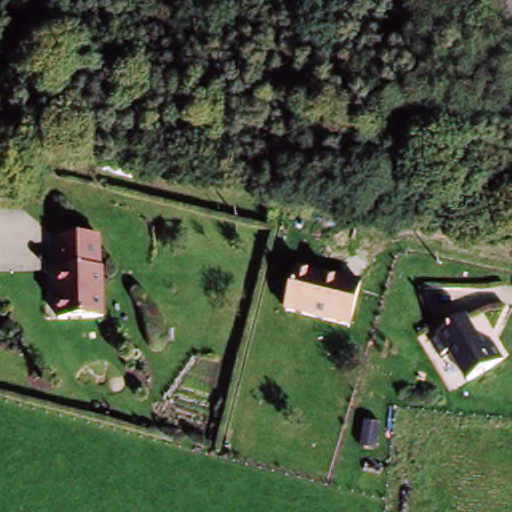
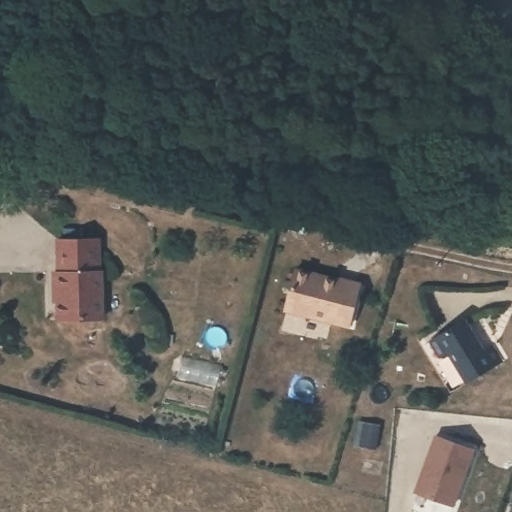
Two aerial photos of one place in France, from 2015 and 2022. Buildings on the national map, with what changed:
unchanged [(51,291),(51,273),(56,272),(56,241),(97,241),(96,273),(99,273),(100,320),(55,320),(55,301),(51,301),(51,291)]
unchanged [(359,285),(348,331),(283,314),(295,269),(359,285)]
unchanged [(483,347),(493,342),(499,359),(467,379),(449,350),(441,355),(430,338),(465,318),(483,347)]
new [(434,440),(472,454),(452,510),(414,496),(434,440)]

